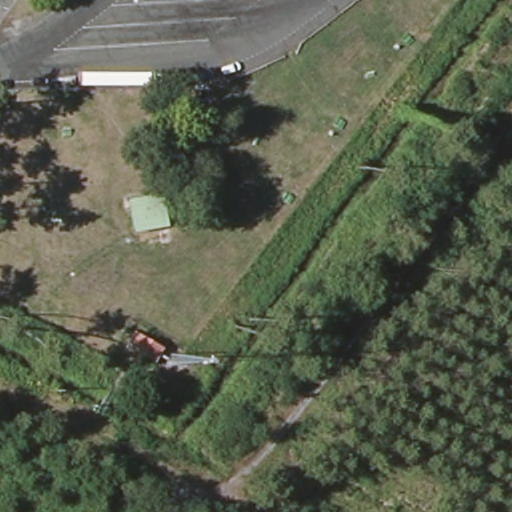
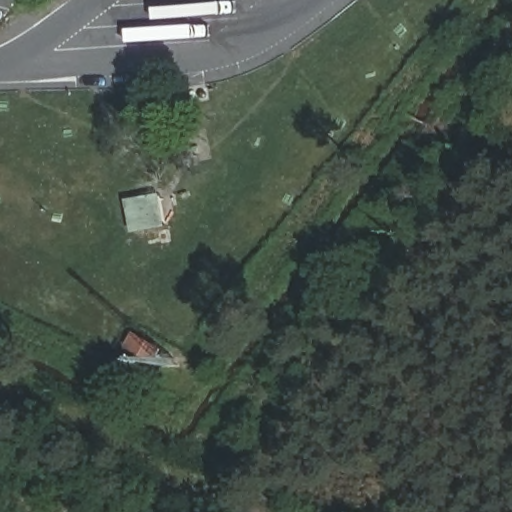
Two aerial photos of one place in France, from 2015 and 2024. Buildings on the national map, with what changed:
unchanged [(166,228),(137,233),(129,200),(160,194),(166,228)]
unchanged [(161,369),(123,347),(134,327),(173,349),(161,369)]

